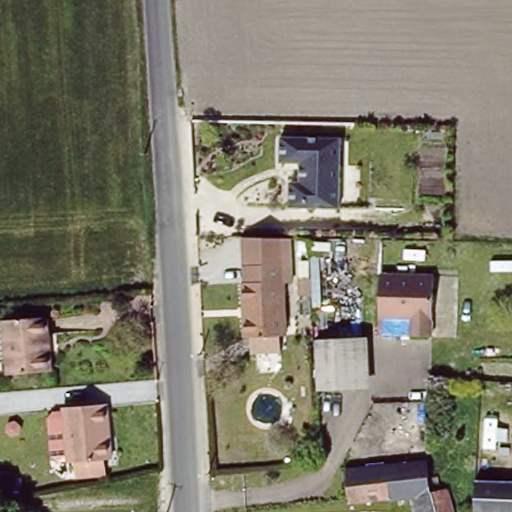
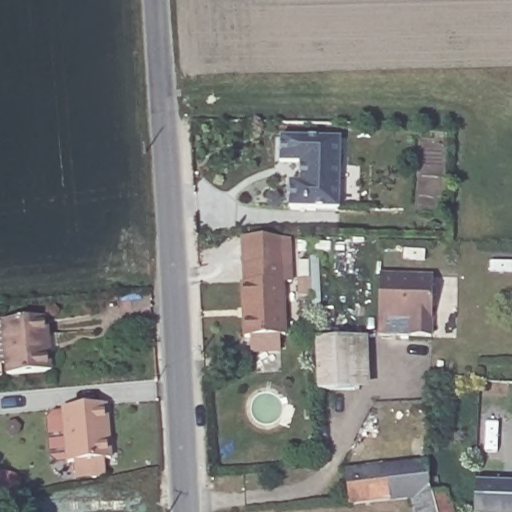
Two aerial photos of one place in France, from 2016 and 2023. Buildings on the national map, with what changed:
unchanged [(288,180),(298,180),(298,164),(279,164),(279,136),(340,138),(339,209),(288,207),(288,180)]
unchanged [(291,238),(291,249),(274,249),(275,266),(245,268),(245,237),(291,238)]
unchanged [(275,266),(274,249),(291,249),(292,283),(284,285),(286,336),(282,337),(282,352),(253,352),(253,337),(245,337),(244,284),(246,285),(245,268),(275,266)]
unchanged [(413,332),(413,317),(383,315),(383,270),(434,271),(433,332),(413,332)]
unchanged [(47,376),(3,378),(0,337),(0,325),(42,322),(47,376)]
unchanged [(365,341),(367,391),(328,392),(326,342),(365,341)]
unchanged [(82,465),(75,465),(74,462),(66,464),(60,458),(56,424),(62,416),(70,415),(70,412),(110,408),(113,441),(116,444),(116,462),(112,462),(112,478),(84,481),(82,465)]
unchanged [(445,490),(452,512),(414,512),(411,501),(389,503),(386,468),(430,463),(431,495),(445,490)]
unchanged [(345,471),(386,468),(389,503),(348,507),(345,471)]
unchanged [(476,485),(512,485),(512,512),(475,512),(476,485)]

